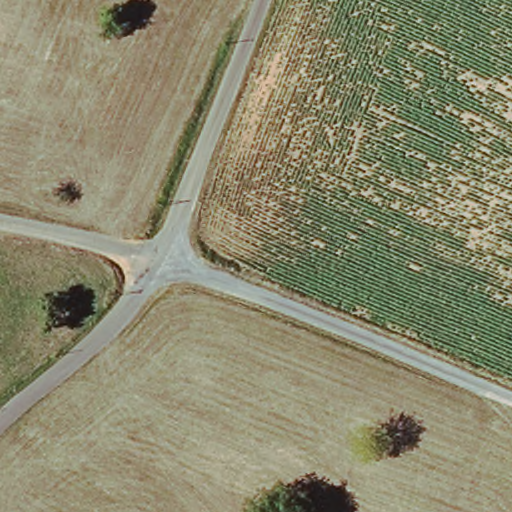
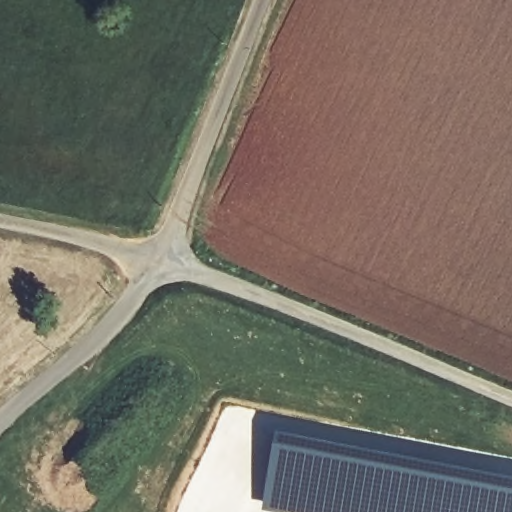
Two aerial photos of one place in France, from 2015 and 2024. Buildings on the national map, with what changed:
new [(512,474),(512,512),(259,512),(275,428),(512,474)]

